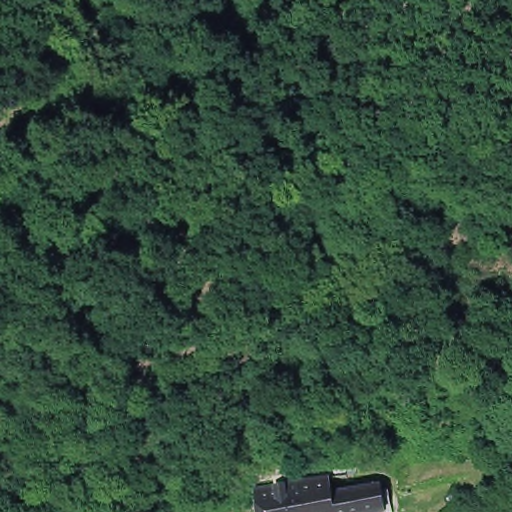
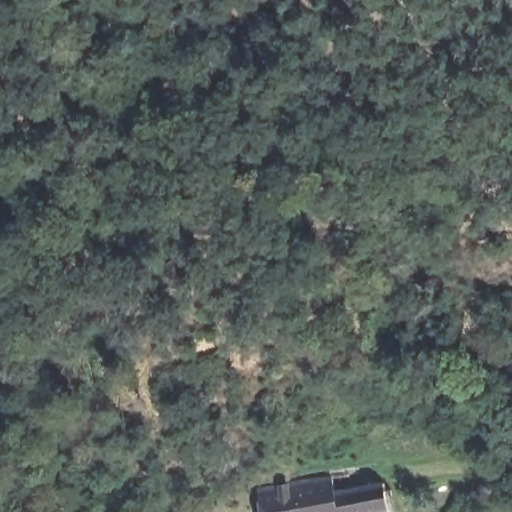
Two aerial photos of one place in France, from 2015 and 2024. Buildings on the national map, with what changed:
unchanged [(380,468),(385,495),(391,494),(394,512),(392,512),(259,512),(255,495),(380,468)]

